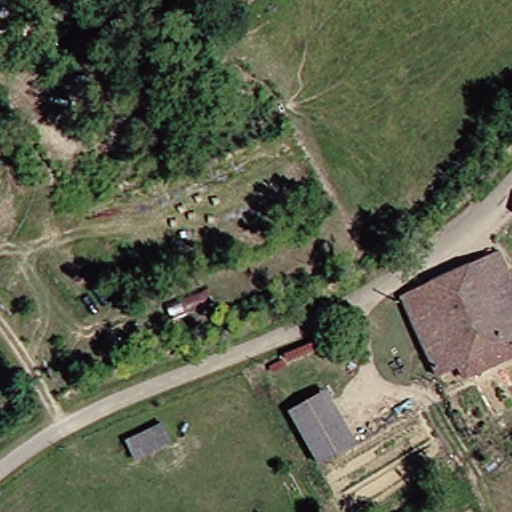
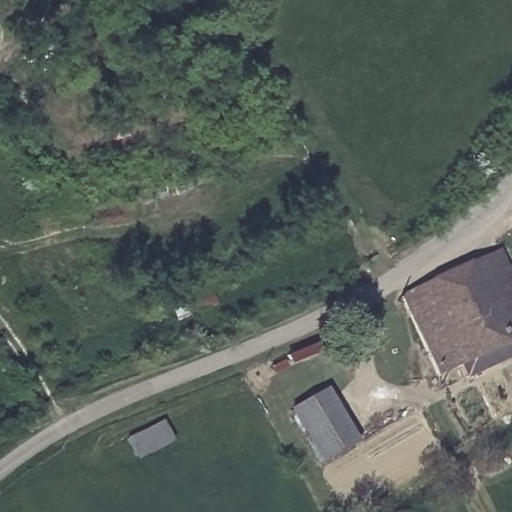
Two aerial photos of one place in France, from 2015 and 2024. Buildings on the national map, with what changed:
unchanged [(451,366),(428,377),(395,292),(488,250),(502,285),(512,280),(512,337),(508,339),(512,348),(512,353),(457,379),(451,366)]
unchanged [(314,460),(282,411),(318,388),(346,439),(314,460)]
unchanged [(174,444),(137,464),(125,441),(162,422),(174,444)]

